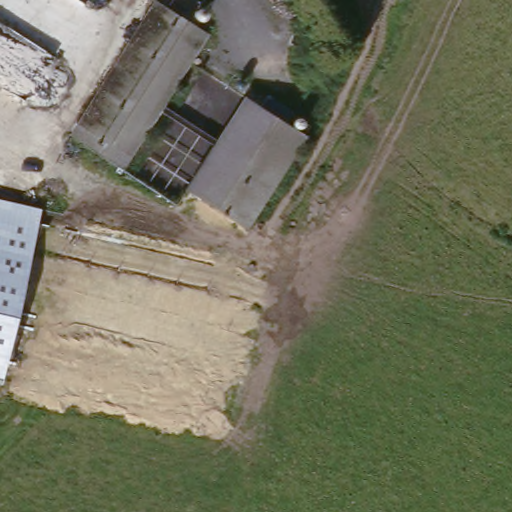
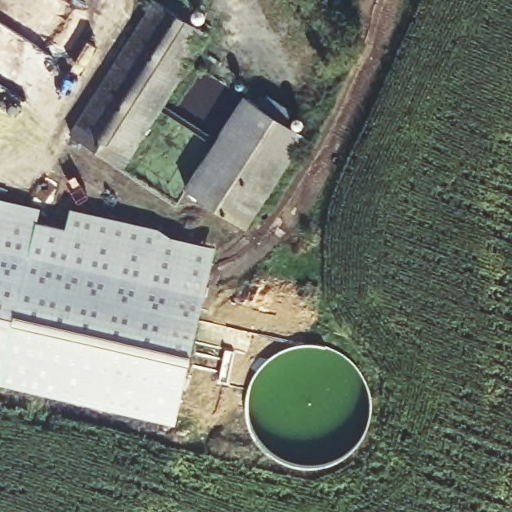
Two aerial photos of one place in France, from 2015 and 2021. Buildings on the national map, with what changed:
unchanged [(151,7),(202,39),(125,163),(73,131),(151,7)]
unchanged [(241,93),(301,130),(242,224),(181,189),(241,93)]
unchanged [(1,374),(0,374),(0,198),(42,207),(1,374)]
new [(1,374),(38,223),(66,228),(70,209),(159,229),(173,239),(215,248),(174,422),(0,382),(0,374),(1,374)]

